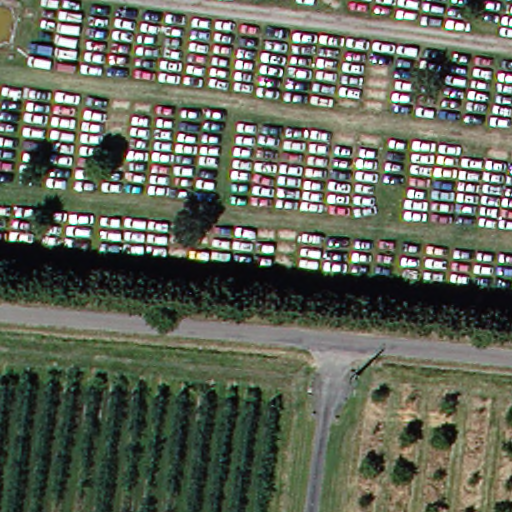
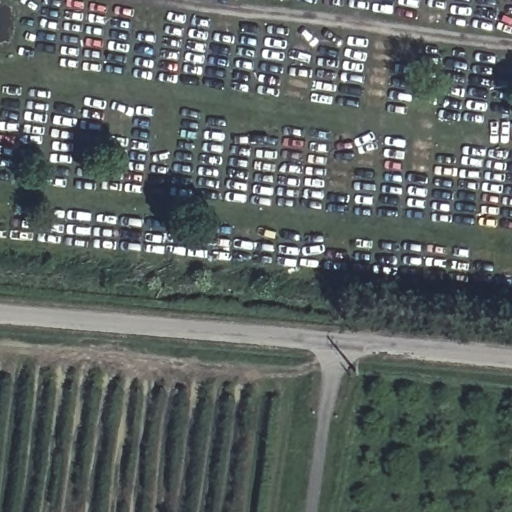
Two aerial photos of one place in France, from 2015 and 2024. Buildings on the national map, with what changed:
[]

